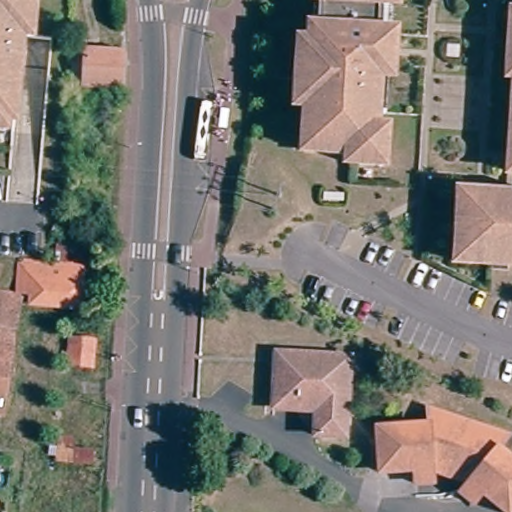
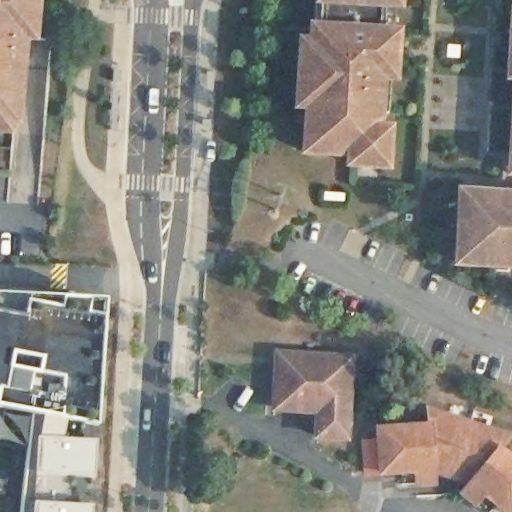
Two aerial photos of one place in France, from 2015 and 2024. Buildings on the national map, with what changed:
unchanged [(0,0),(33,0),(30,32),(22,32),(14,117),(8,116),(7,125),(0,125),(0,0)]
unchanged [(352,156),(307,154),(310,109),(300,108),(302,76),(303,45),(313,46),(315,31),(321,31),(322,2),(321,2),(321,0),(398,0),(398,6),(394,69),(391,69),(388,116),(378,116),(377,133),(388,134),(386,169),(350,166),(352,156)]
demolished [(92,84),(92,90),(84,90),(85,77),(80,77),(82,44),(95,44),(95,51),(129,54),(127,86),(92,84)]
unchanged [(460,46),(459,57),(448,57),(448,45),(460,46)]
unchanged [(512,142),(512,170),(511,170),(512,142)]
unchanged [(343,194),(343,200),(325,200),(326,193),(343,194)]
unchanged [(487,265),(456,263),(457,253),(458,228),(460,194),(470,195),(512,196),(512,265),(487,265)]
demolished [(78,312),(30,307),(31,301),(20,299),(13,298),(14,294),(19,260),(42,261),(51,262),(83,265),(78,312)]
demolished [(0,292),(14,294),(13,298),(20,299),(12,341),(0,340),(0,292)]
new [(96,426),(91,512),(21,512),(34,412),(0,406),(0,293),(104,298),(96,426)]
demolished [(0,408),(0,342),(12,343),(0,408)]
unchanged [(342,435),(312,433),(313,410),(271,408),(274,367),(275,353),(282,353),(345,357),(342,435)]
unchanged [(431,483),(431,497),(411,496),(412,482),(371,481),(372,436),(418,437),(419,425),(420,415),(462,426),(475,429),(512,438),(512,454),(506,459),(512,467),(512,512),(489,512),(478,498),(473,501),(460,483),(431,483)]

